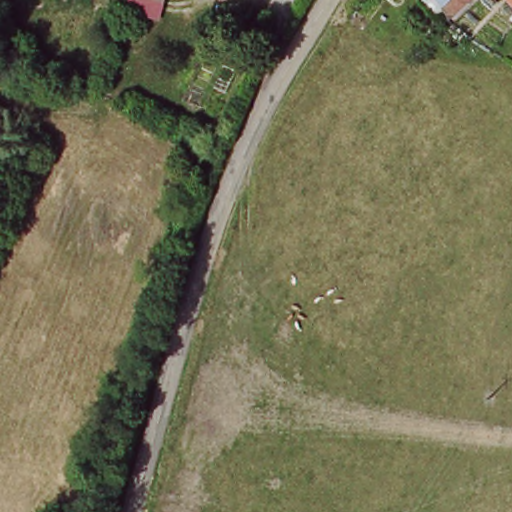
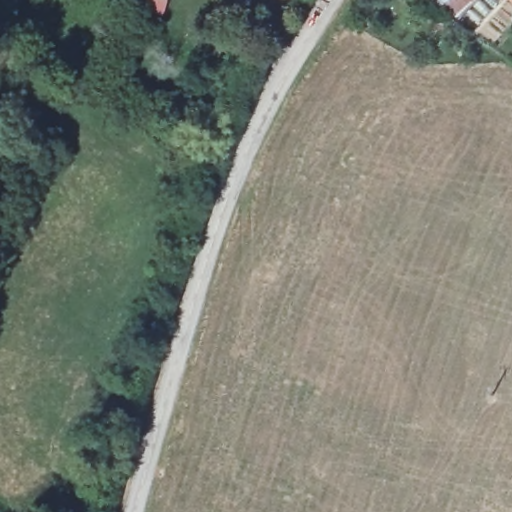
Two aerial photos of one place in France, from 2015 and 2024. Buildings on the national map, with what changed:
unchanged [(131,9),(133,0),(169,0),(164,21),(131,9)]
unchanged [(446,6),(452,0),(470,0),(455,14),(446,6)]

